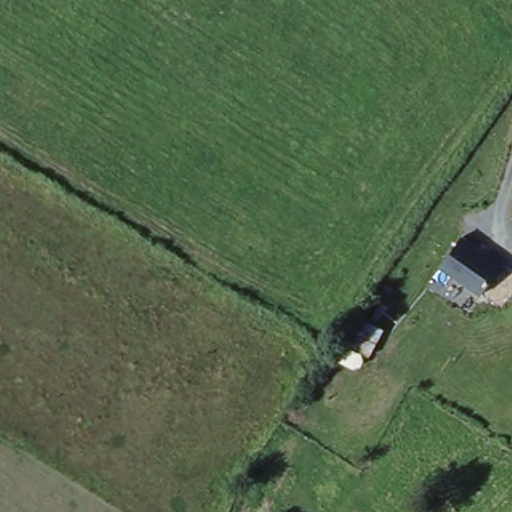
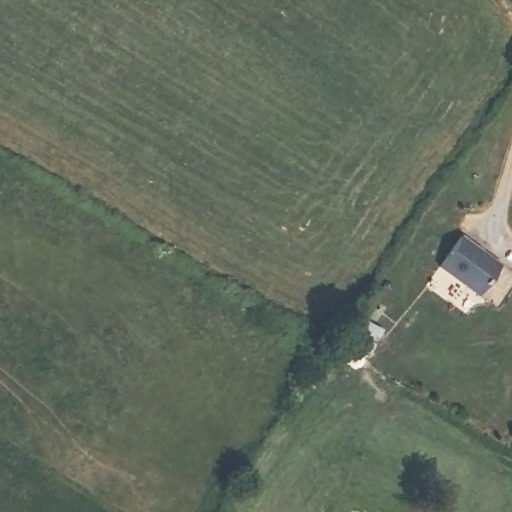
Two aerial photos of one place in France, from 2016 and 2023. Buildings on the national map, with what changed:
unchanged [(502,263),(479,292),(440,264),(461,234),(502,263)]

